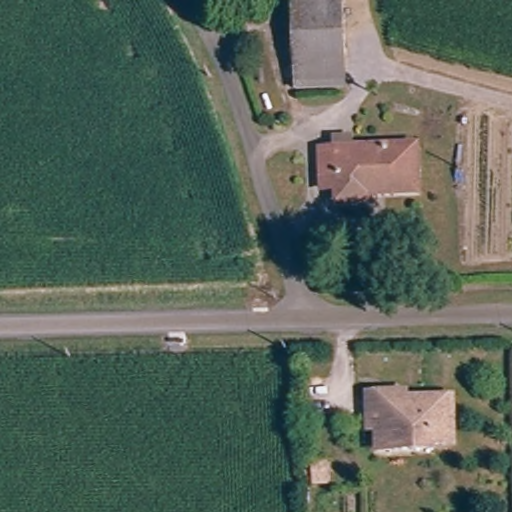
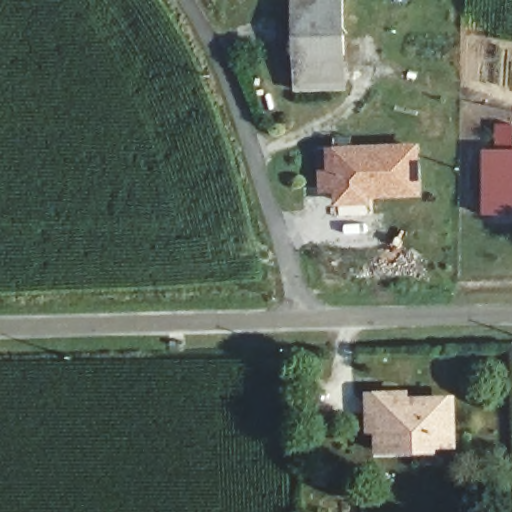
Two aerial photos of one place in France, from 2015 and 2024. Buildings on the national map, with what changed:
unchanged [(287,0),(350,0),(349,62),(287,64),(287,0)]
unchanged [(287,92),(287,80),(287,64),(349,62),(349,90),(337,91),(287,92)]
unchanged [(423,192),(370,190),(368,203),(342,200),(341,185),(328,185),(326,147),(341,148),(342,133),(361,135),(360,149),(424,152),(423,192)]
new [(512,151),(512,215),(484,215),(484,151),(512,151)]
unchanged [(380,449),(379,426),(370,425),(370,410),(369,390),(402,390),(412,390),(413,400),(454,400),(453,440),(437,440),(438,450),(424,450),(380,449)]

